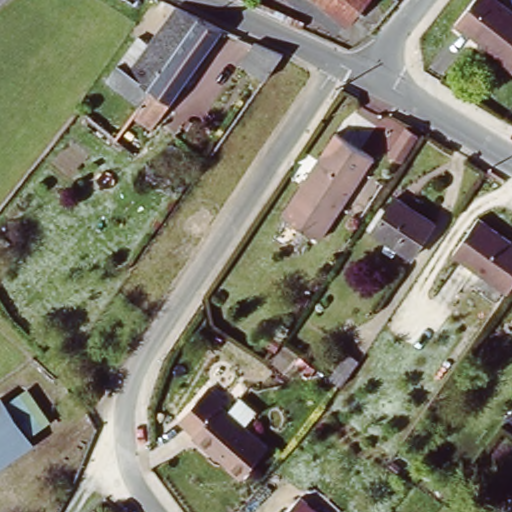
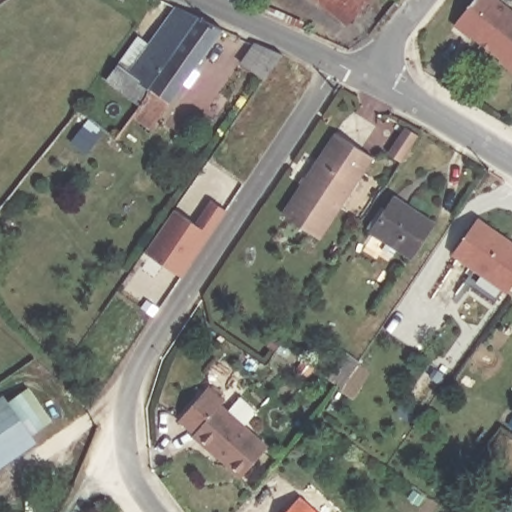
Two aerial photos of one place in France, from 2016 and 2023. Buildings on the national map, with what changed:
unchanged [(286,19),(242,0),(262,0),(288,15),(286,19)]
unchanged [(328,0),(367,0),(351,19),(328,0)]
unchanged [(503,60),(505,58),(472,32),(470,35),(456,24),(457,23),(441,8),(447,0),(503,0),(512,7),(512,67),(503,60)]
unchanged [(146,102),(141,99),(136,106),(107,84),(133,49),(140,39),(151,47),(180,6),(207,19),(146,102)]
unchanged [(146,102),(207,19),(227,29),(162,120),(157,126),(137,113),(146,102)]
unchanged [(290,50),(271,75),(247,59),(263,38),(290,50)]
unchanged [(340,130),(377,154),(325,235),(287,211),(340,130)]
unchanged [(397,197),(436,224),(415,255),(375,229),(397,197)]
new [(197,224),(213,200),(227,210),(212,234),(182,277),(146,252),(176,209),(197,224)]
unchanged [(454,252),(479,215),(512,238),(512,286),(509,290),(454,252)]
unchanged [(362,359),(345,386),(332,377),(349,351),(362,359)]
unchanged [(0,392),(6,399),(27,384),(51,414),(29,431),(34,437),(20,448),(0,424),(0,392)]
unchanged [(182,416),(213,384),(227,399),(224,402),(231,409),(246,396),(261,410),(247,424),(270,446),(242,475),(195,432),(197,429),(182,416)]
unchanged [(0,462),(0,424),(20,448),(0,462)]
unchanged [(299,494),(319,512),(282,512),(299,494)]

